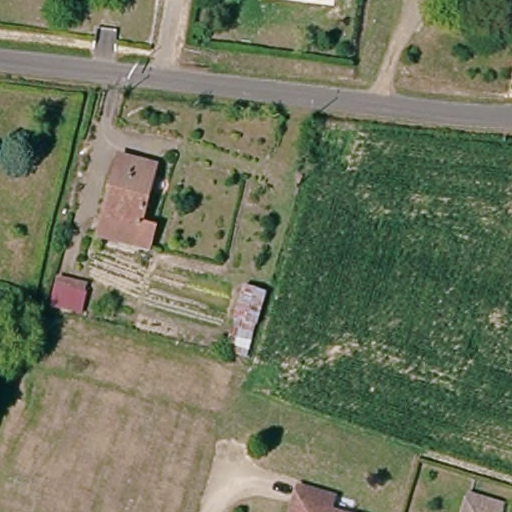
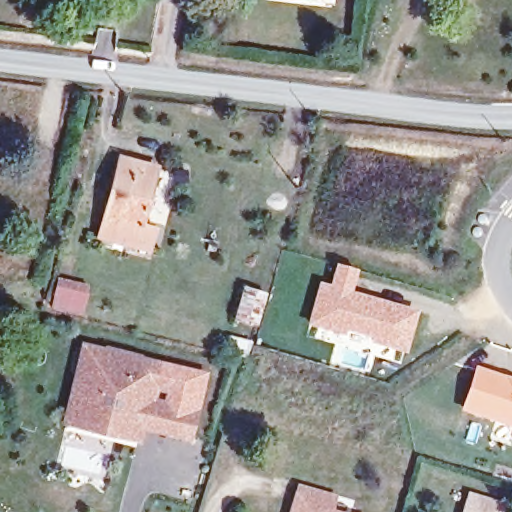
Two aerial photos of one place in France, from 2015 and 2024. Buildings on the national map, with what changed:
unchanged [(149,248),(99,235),(119,157),(153,167),(139,221),(155,225),(149,248)]
new [(318,281),(329,284),(336,263),(360,270),(354,291),(419,311),(406,353),(347,332),(346,337),(306,325),(318,281)]
new [(78,287),(108,295),(101,322),(71,315),(78,287)]
new [(226,352),(234,324),(244,287),(269,295),(257,331),(248,357),(226,352)]
new [(145,431),(141,444),(62,425),(83,343),(166,362),(156,400),(199,410),(192,442),(145,431)]
new [(208,373),(199,410),(156,400),(166,362),(208,373)]
new [(476,365),(512,377),(512,428),(459,411),(476,365)]
unchanged [(338,498),(334,512),(292,512),(294,507),(300,487),(338,498)]
unchanged [(466,504),(469,492),(501,500),(497,512),(463,512),(466,504)]

